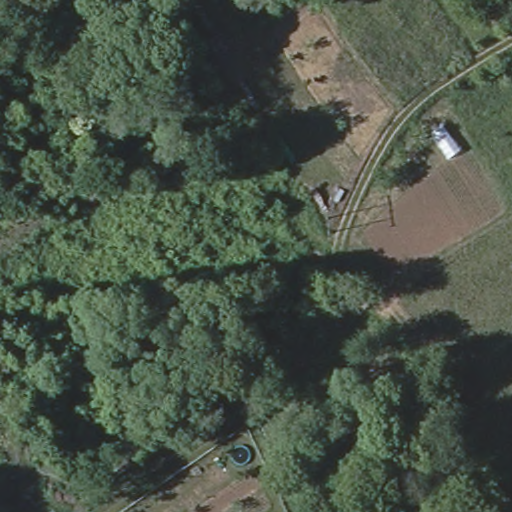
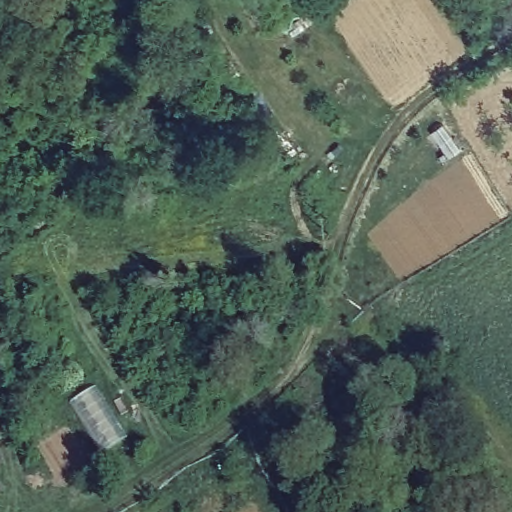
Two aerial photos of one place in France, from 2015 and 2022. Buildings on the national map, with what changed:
[]

